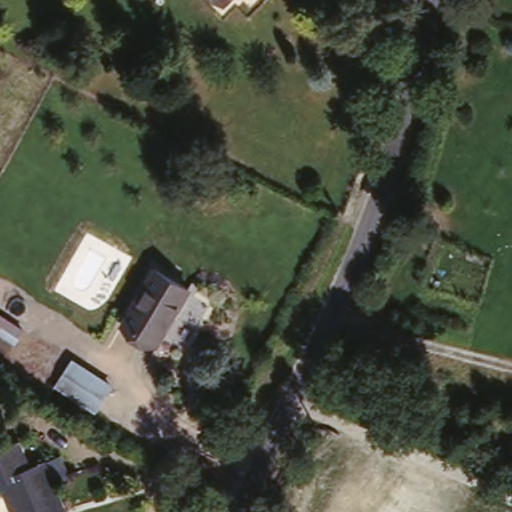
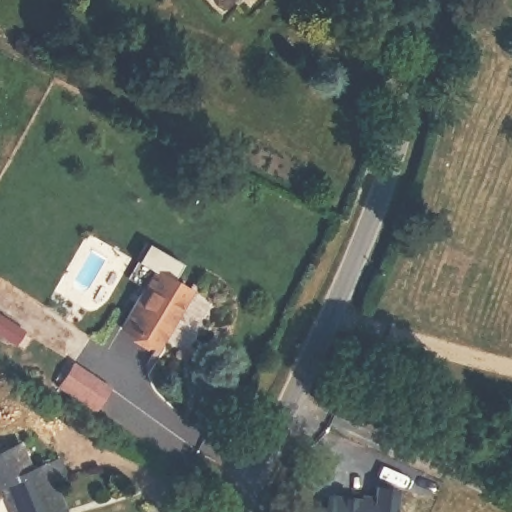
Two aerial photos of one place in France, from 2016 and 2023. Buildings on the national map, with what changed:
unchanged [(226,8),(218,0),(234,0),(226,8)]
unchanged [(159,338),(126,321),(154,266),(190,285),(159,338)]
unchanged [(0,332),(0,316),(21,327),(12,339),(0,332)]
unchanged [(114,384),(97,408),(56,385),(75,357),(114,384)]
unchanged [(64,458),(73,477),(57,484),(67,512),(17,512),(5,483),(0,484),(0,452),(23,444),(34,470),(64,458)]
new [(374,503),(376,488),(396,490),(394,512),(331,512),(332,497),(374,503)]

